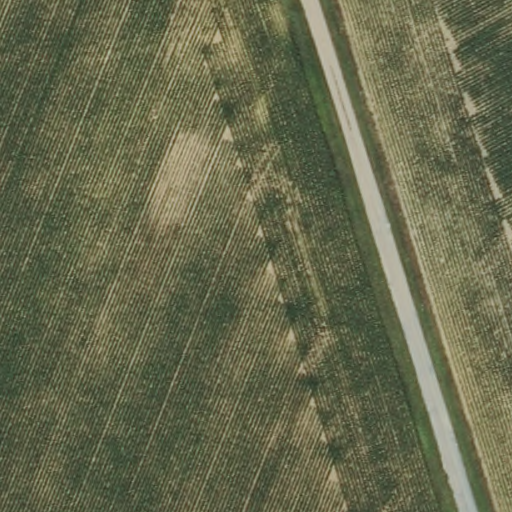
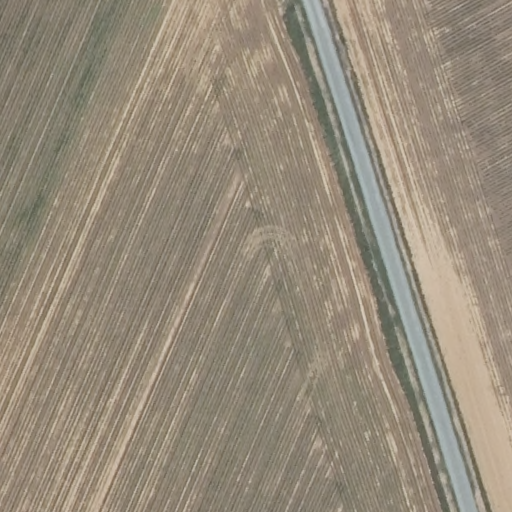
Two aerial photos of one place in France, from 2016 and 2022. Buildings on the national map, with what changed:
[]

